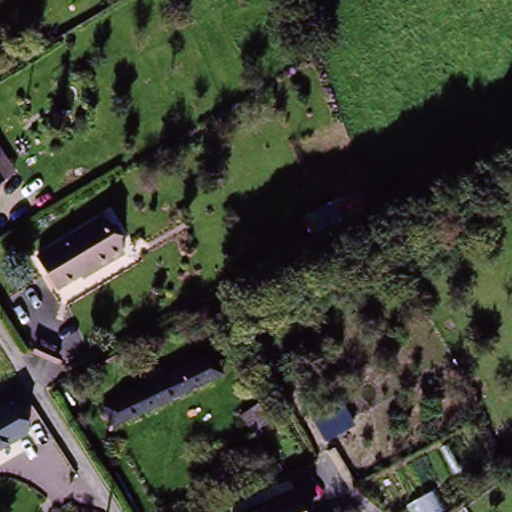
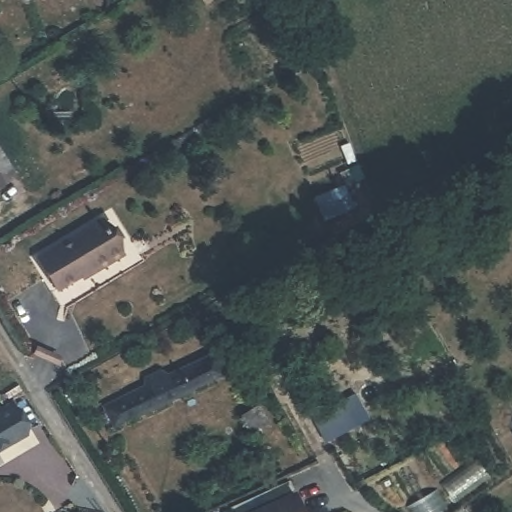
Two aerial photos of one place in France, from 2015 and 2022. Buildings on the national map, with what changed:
unchanged [(6,177),(0,180),(0,166),(6,177)]
unchanged [(77,271),(52,285),(34,252),(99,214),(121,252),(96,268),(81,277),(77,271)]
unchanged [(218,371),(129,423),(113,397),(152,375),(148,365),(163,355),(168,365),(204,344),(218,371)]
unchanged [(16,391),(33,417),(0,439),(0,402),(16,391)]
unchanged [(241,417),(256,406),(267,421),(251,432),(241,417)]
unchanged [(302,512),(229,512),(292,485),(302,512)]

